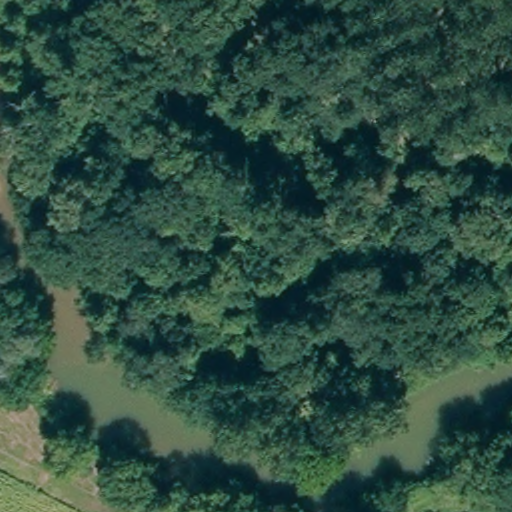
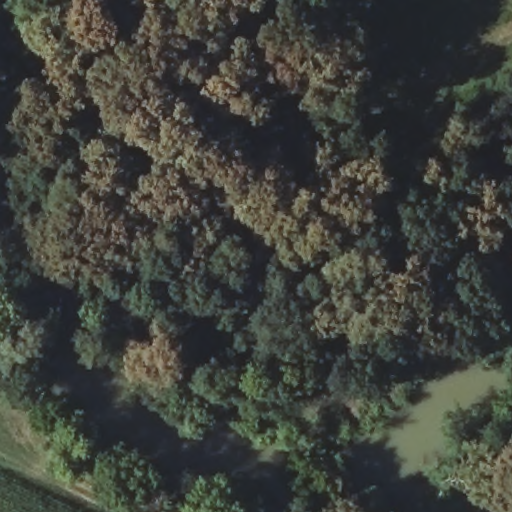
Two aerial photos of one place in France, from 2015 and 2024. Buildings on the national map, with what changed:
[]

